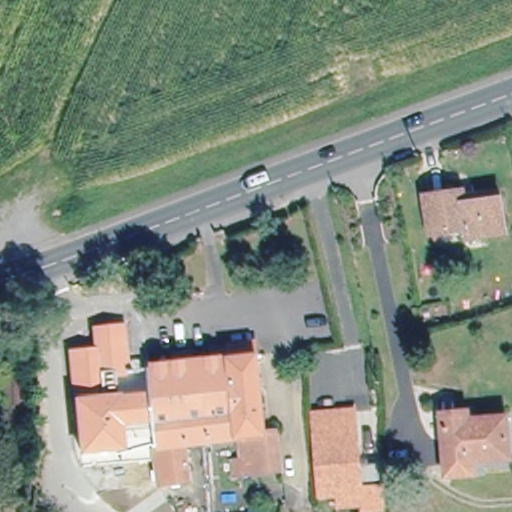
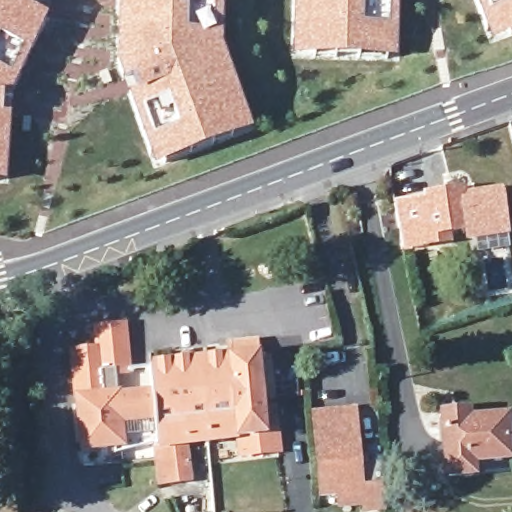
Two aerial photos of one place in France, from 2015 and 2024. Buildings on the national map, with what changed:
new [(4,95),(4,111),(11,114),(7,179),(0,179),(0,0),(13,0),(49,17),(12,96),(4,95)]
new [(222,44),(254,129),(155,165),(129,95),(137,90),(132,75),(123,79),(117,62),(119,0),(224,0),(222,44)]
new [(398,56),(293,55),(294,0),(399,0),(398,56)]
new [(491,39),(476,0),(512,0),(512,31),(491,39)]
unchanged [(463,185),(466,200),(498,194),(506,230),(471,237),(467,219),(432,226),(425,192),(463,185)]
new [(432,226),(467,219),(471,237),(506,230),(507,236),(466,243),(465,240),(402,251),(395,201),(422,199),(421,195),(425,195),(432,226)]
unchanged [(89,371),(84,323),(127,317),(133,366),(89,371)]
unchanged [(227,356),(227,343),(253,340),(265,426),(276,425),(280,468),(244,474),(238,436),(204,440),(196,359),(227,356)]
unchanged [(204,440),(179,442),(183,480),(157,482),(152,445),(96,450),(89,371),(133,366),(196,359),(204,440)]
unchanged [(25,418),(0,417),(1,366),(24,366),(25,418)]
unchanged [(346,498),(345,480),(330,480),(326,422),(336,421),(334,406),(363,405),(369,478),(370,496),(346,498)]
unchanged [(444,474),(444,460),(443,460),(442,412),(467,411),(468,416),(508,415),(509,459),(468,460),(468,472),(444,474)]

